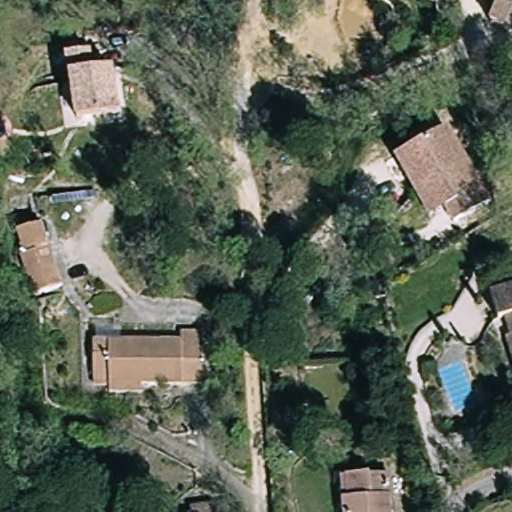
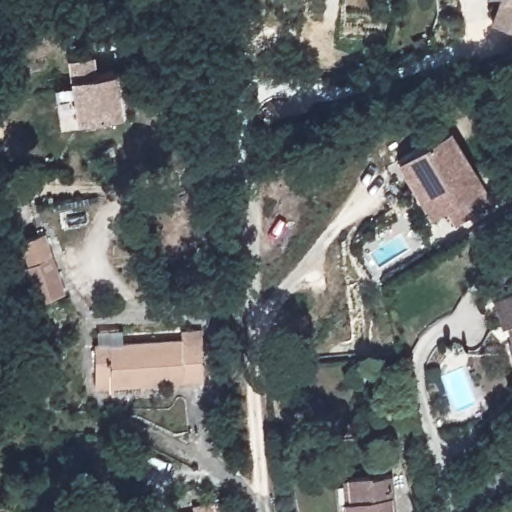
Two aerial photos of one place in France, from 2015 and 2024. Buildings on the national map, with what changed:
unchanged [(492,22),(501,0),(512,0),(512,29),(492,22)]
unchanged [(72,54),(93,51),(96,71),(116,68),(122,113),(81,118),(72,54)]
unchanged [(422,194),(402,160),(453,132),(495,206),(459,226),(451,211),(436,220),(422,194)]
unchanged [(18,263),(23,261),(15,235),(40,229),(57,292),(28,299),(18,263)]
unchanged [(500,322),(492,298),(512,291),(512,318),(500,322)]
unchanged [(192,345),(192,338),(213,337),(215,386),(125,391),(125,364),(106,365),(106,348),(192,345)]
unchanged [(348,493),(347,477),(390,474),(392,498),(388,499),(390,512),(344,512),(343,493),(348,493)]
unchanged [(206,512),(184,512),(183,508),(205,505),(206,512)]

